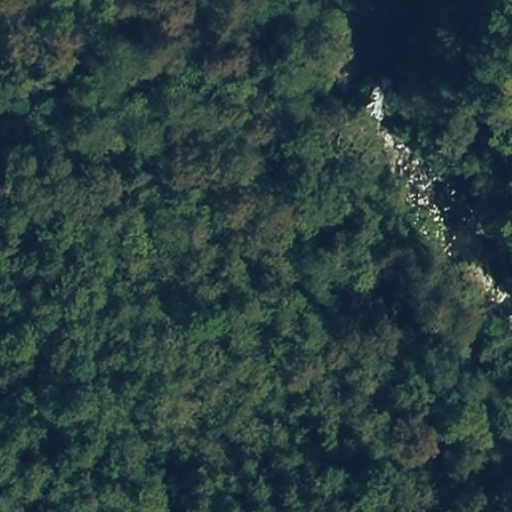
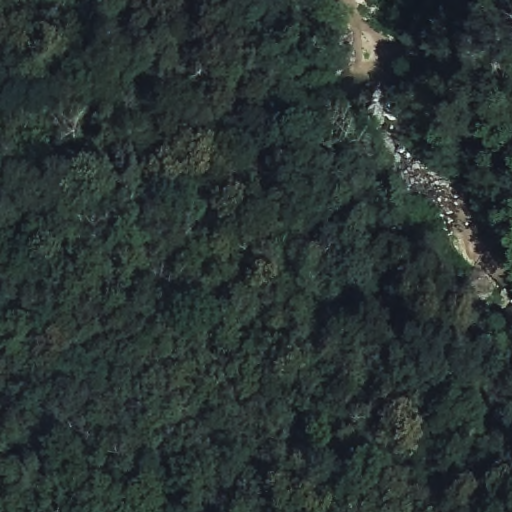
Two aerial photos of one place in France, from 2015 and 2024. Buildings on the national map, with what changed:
[]

